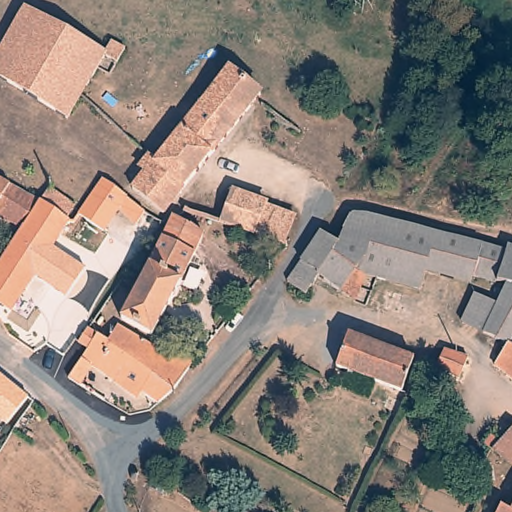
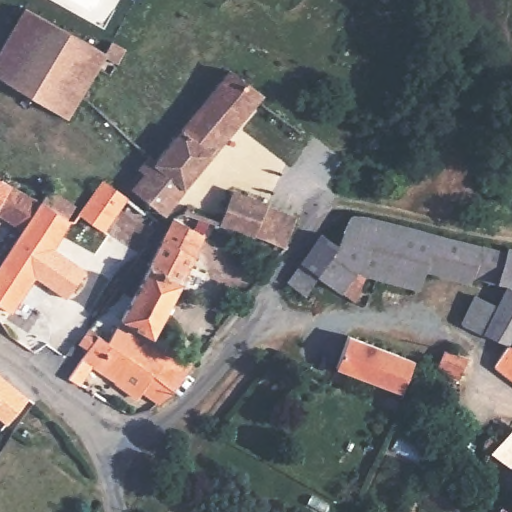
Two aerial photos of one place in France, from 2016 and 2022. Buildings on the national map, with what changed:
unchanged [(132,61),(118,84),(102,75),(90,96),(102,104),(91,121),(78,114),(73,122),(0,78),(0,59),(21,25),(33,7),(111,53),(132,61)]
unchanged [(244,66),(270,87),(203,169),(185,189),(182,194),(172,205),(141,184),(155,167),(147,161),(157,149),(166,155),(224,89),(244,66)]
unchanged [(99,189),(105,180),(147,212),(137,224),(119,210),(102,232),(80,214),(99,189)]
unchanged [(240,228),(215,219),(239,189),(282,209),(295,214),(281,244),(275,241),(261,236),(240,228)]
unchanged [(7,195),(0,207),(0,191),(7,195)]
unchanged [(0,231),(0,207),(7,195),(36,213),(46,197),(75,214),(65,229),(54,247),(35,276),(10,315),(0,308),(0,269),(18,241),(0,231)]
unchanged [(486,287),(495,292),(498,285),(475,280),(474,285),(431,274),(422,292),(362,267),(360,270),(370,277),(357,303),(322,280),(311,297),(307,294),(293,284),(326,238),(342,248),(356,219),(434,235),(511,254),(512,253),(512,336),(470,312),(486,287)]
unchanged [(124,317),(151,264),(159,249),(164,239),(172,220),(205,237),(193,258),(180,282),(153,334),(124,317)]
unchanged [(86,269),(67,298),(35,276),(54,247),(86,269)]
unchanged [(171,394),(159,409),(140,397),(134,406),(87,371),(77,386),(66,378),(96,337),(107,324),(180,364),(190,369),(171,394)]
unchanged [(412,364),(400,395),(335,369),(347,337),(412,364)]
unchanged [(512,346),(512,371),(499,360),(512,346)]
unchanged [(467,356),(458,381),(435,374),(445,348),(467,356)]
unchanged [(23,394),(30,402),(9,423),(0,414),(0,372),(23,394)]
unchanged [(487,428),(500,440),(512,427),(512,468),(476,444),(487,428)]
unchanged [(510,506),(512,505),(512,512),(507,512),(510,506)]

